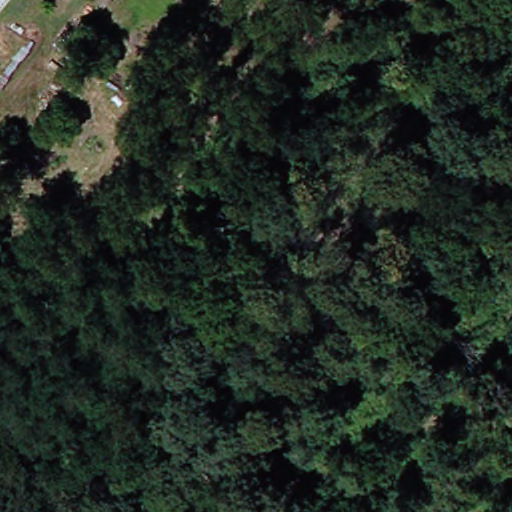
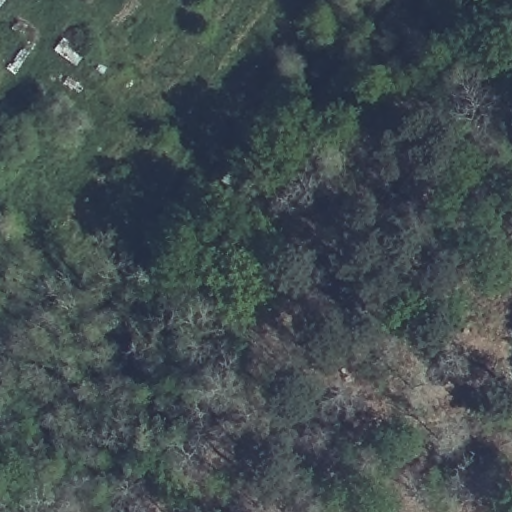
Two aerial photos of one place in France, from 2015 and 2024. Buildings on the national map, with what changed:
unchanged [(0,0),(1,0),(0,1),(0,0)]

